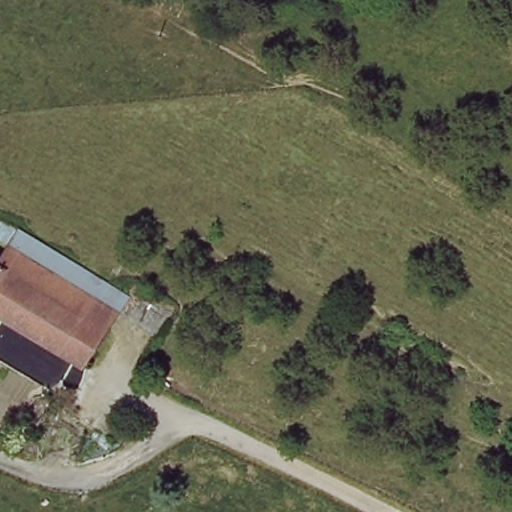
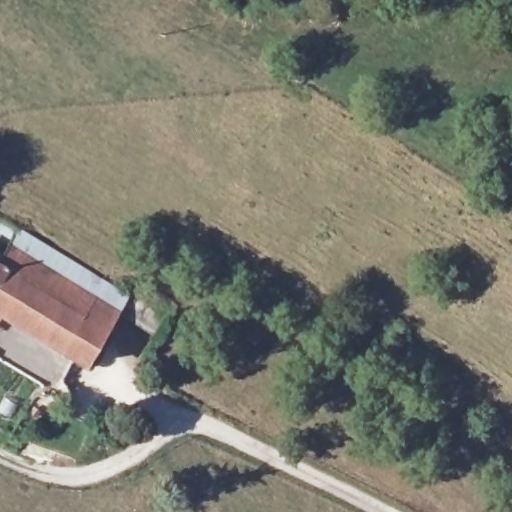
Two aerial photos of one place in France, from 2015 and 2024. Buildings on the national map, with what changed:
unchanged [(111,335),(0,266),(0,264),(17,236),(128,306),(118,322),(111,335)]
unchanged [(111,335),(88,375),(0,321),(0,266),(111,335)]
unchanged [(118,322),(128,306),(135,294),(136,293),(173,316),(156,347),(152,345),(118,322)]

